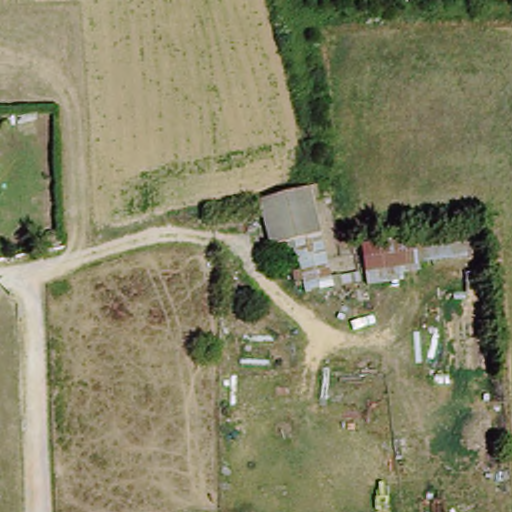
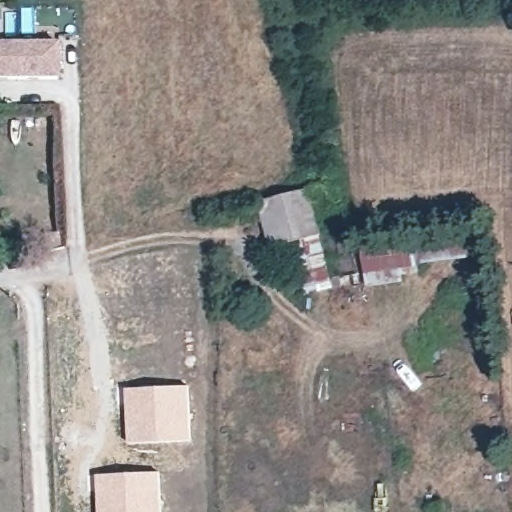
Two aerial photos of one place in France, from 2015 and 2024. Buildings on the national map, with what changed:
new [(17,81),(0,81),(0,46),(16,45),(17,81)]
new [(56,45),(57,80),(17,81),(16,45),(56,45)]
unchanged [(323,231),(274,244),(262,195),(311,183),(323,231)]
unchanged [(464,226),(469,254),(364,271),(359,243),(464,226)]
new [(188,384),(190,439),(126,442),(124,387),(188,384)]
new [(160,512),(96,512),(94,473),(158,471),(160,512)]

